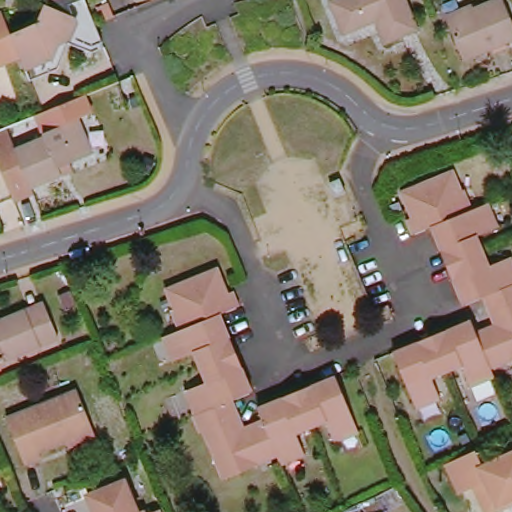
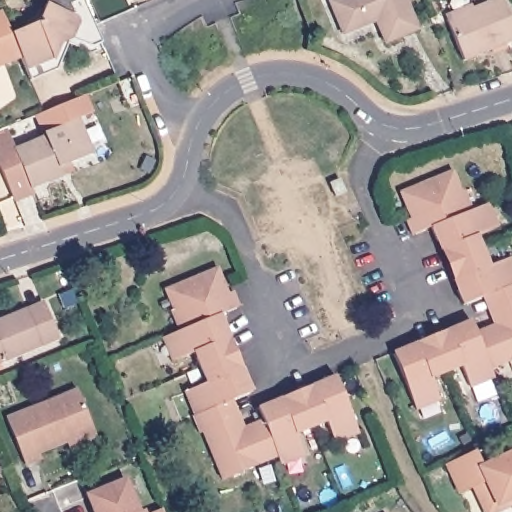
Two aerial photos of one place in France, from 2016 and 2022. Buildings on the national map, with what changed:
unchanged [(73,12),(72,15),(75,17),(77,24),(71,38),(62,35),(57,49),(50,51),(52,58),(26,70),(20,57),(12,34),(38,23),(48,0),(82,0),(79,1),(70,5),(73,12)]
unchanged [(417,35),(385,47),(375,24),(369,26),(369,29),(343,39),(330,7),(347,0),(402,0),(417,35)]
unchanged [(512,41),(464,60),(447,20),(494,0),(503,0),(512,22),(512,41)]
unchanged [(12,34),(20,57),(0,65),(0,14),(2,12),(12,34)]
unchanged [(67,175),(37,187),(39,193),(20,201),(0,155),(0,132),(12,127),(20,150),(50,137),(49,134),(83,119),(98,155),(75,164),(77,170),(67,175)]
unchanged [(462,191),(460,191),(468,211),(485,205),(495,229),(477,236),(490,266),(507,259),(512,271),(512,360),(510,360),(508,356),(490,365),(493,373),(470,383),(462,365),(432,378),(440,395),(415,405),(394,352),(408,346),(412,355),(420,352),(419,347),(450,334),(452,338),(460,335),(457,326),(471,320),(477,335),(496,327),(490,313),(497,310),(490,294),(464,305),(457,290),(467,286),(463,278),(459,280),(445,247),(450,246),(447,237),(437,241),(432,227),(412,235),(407,220),(416,216),(414,211),(409,214),(400,192),(453,170),(462,191)]
unchanged [(345,193),(336,197),(330,184),(340,180),(345,193)]
unchanged [(234,373),(237,381),(247,377),(253,392),(226,403),(233,418),(240,415),(245,430),(264,421),(258,407),(272,402),(277,411),(285,408),(283,403),(315,390),(317,395),(325,391),(321,382),(335,376),(358,429),(334,439),(327,421),(297,434),(304,451),(280,461),(277,452),(258,460),(260,465),(224,480),(204,432),(200,433),(193,416),(199,414),(190,390),(207,383),(195,353),(177,360),(167,336),(184,330),(175,310),(174,310),(165,290),(217,268),(227,290),(222,291),(224,296),(234,292),(238,302),(237,302),(240,306),(221,315),(227,328),(217,332),(220,340),(225,339),(239,371),(234,373)]
unchanged [(0,362),(0,321),(26,310),(29,316),(47,309),(59,338),(0,362)]
unchanged [(67,442),(39,453),(42,458),(25,465),(7,418),(77,390),(94,431),(95,435),(69,446),(67,442)]
unchanged [(492,505),(487,507),(484,506),(477,490),(460,498),(447,468),(475,455),(482,470),(512,456),(512,506),(504,510),(492,505)]
unchanged [(94,512),(87,495),(125,480),(139,512),(94,512)]
unchanged [(144,512),(139,512),(144,510),(144,512)]
unchanged [(162,512),(155,512),(162,510),(162,512)]

